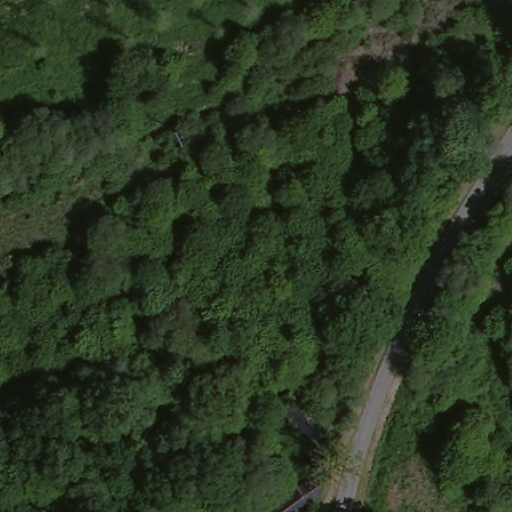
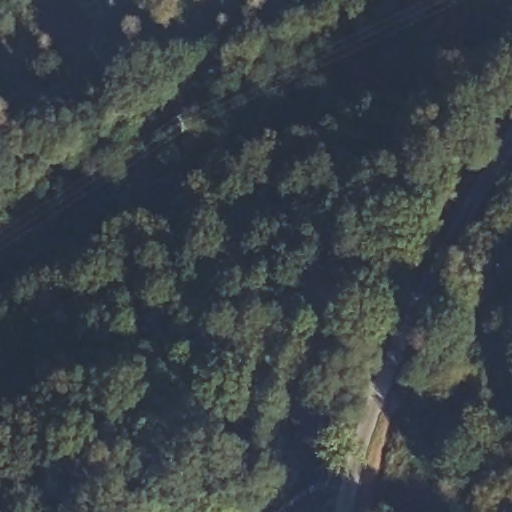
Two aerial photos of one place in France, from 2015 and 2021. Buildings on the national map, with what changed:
unchanged [(332,440),(307,458),(276,411),(301,397),(303,395),(332,440)]
unchanged [(298,510),(299,512),(260,512),(302,484),(314,500),(298,510)]

